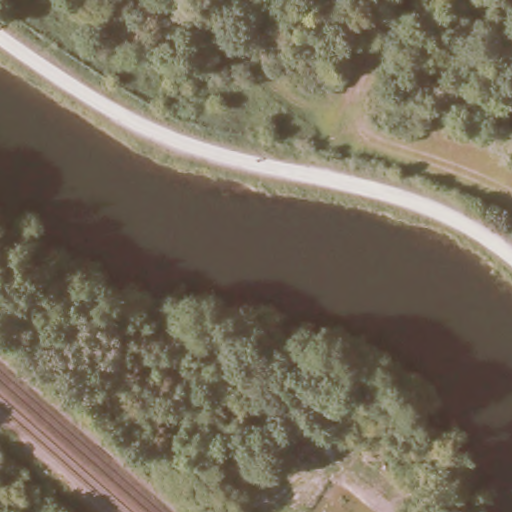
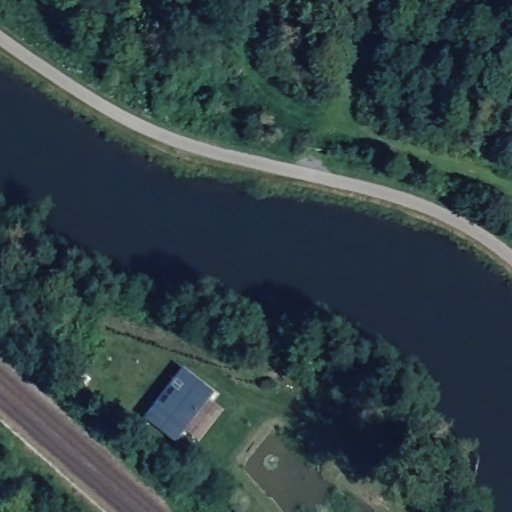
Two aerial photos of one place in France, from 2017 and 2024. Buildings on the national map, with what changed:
new [(177,444),(145,418),(185,370),(216,396),(210,402),(222,412),(200,441),(187,431),(177,444)]

